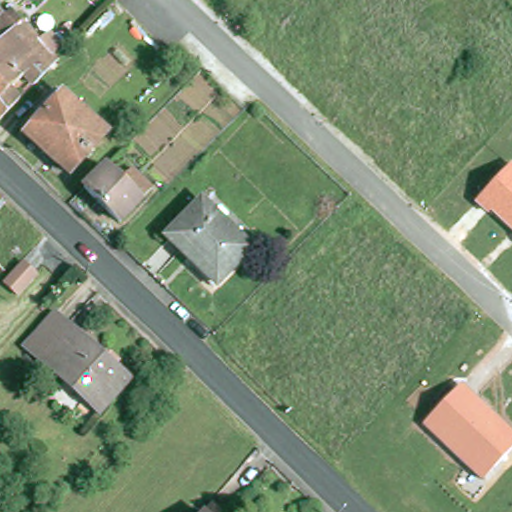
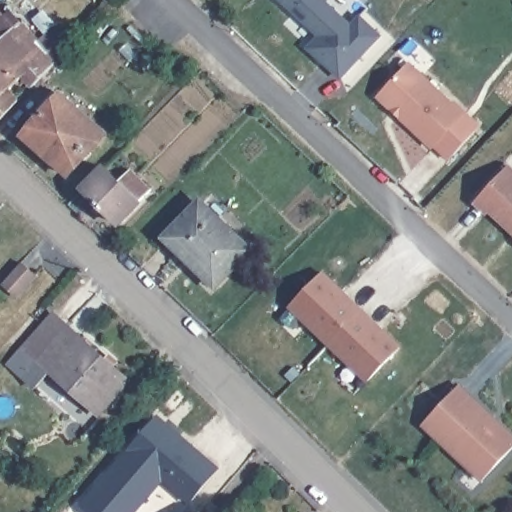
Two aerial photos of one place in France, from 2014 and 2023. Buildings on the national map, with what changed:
new [(351,27),(361,16),(380,34),(341,73),(310,46),(321,34),(284,0),(322,0),(351,27)]
unchanged [(58,68),(34,92),(23,80),(7,95),(19,107),(0,127),(0,26),(11,17),(58,68)]
new [(481,125),(447,161),(375,96),(409,59),(481,125)]
unchanged [(108,134),(70,176),(25,137),(26,135),(20,130),(37,111),(43,116),(62,95),(108,134)]
unchanged [(490,213),(485,216),(472,204),(510,163),(512,165),(512,234),(490,213)]
unchanged [(115,187),(127,175),(147,195),(115,229),(80,195),(101,173),(115,187)]
unchanged [(0,209),(0,204),(2,206),(0,209)]
unchanged [(202,204),(251,251),(217,286),(168,239),(202,204)]
new [(21,264),(35,276),(16,297),(2,285),(21,264)]
new [(287,307),(322,269),(362,307),(325,344),(287,307)]
new [(365,382),(325,344),(362,307),(400,344),(365,382)]
unchanged [(105,420),(44,365),(31,354),(60,321),(73,332),(134,387),(105,420)]
unchanged [(512,431),(512,450),(482,482),(421,426),(461,385),(512,431)]
new [(217,465),(185,502),(163,481),(135,512),(91,512),(82,503),(158,413),(217,465)]
unchanged [(224,512),(205,512),(213,502),(224,512)]

